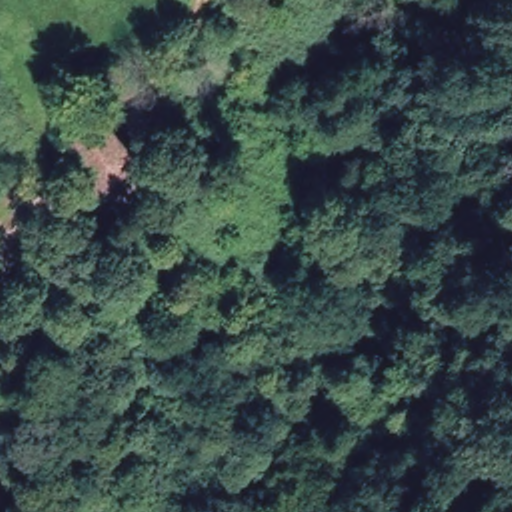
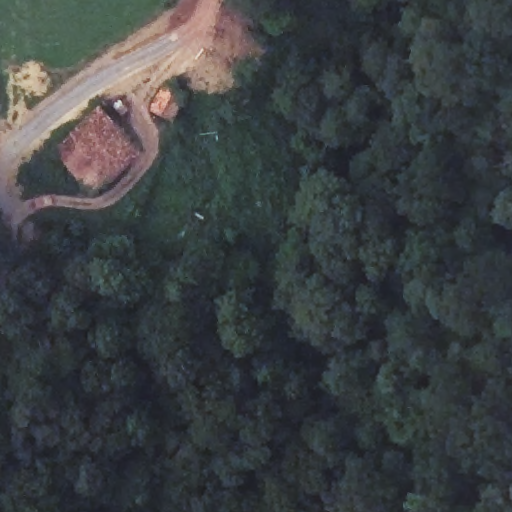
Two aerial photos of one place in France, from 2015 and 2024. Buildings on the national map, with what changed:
unchanged [(171,85),(160,112),(140,105),(153,78),(171,85)]
unchanged [(49,156),(96,112),(134,156),(91,199),(49,156)]

